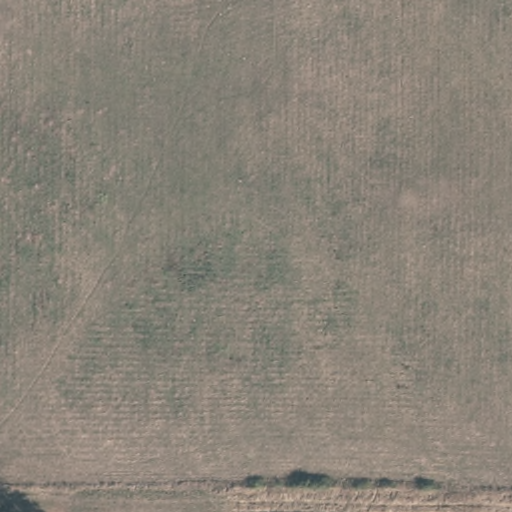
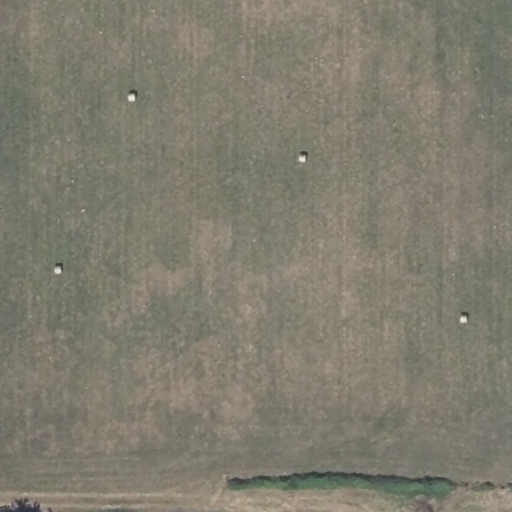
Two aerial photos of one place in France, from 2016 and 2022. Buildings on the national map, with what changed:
[]

